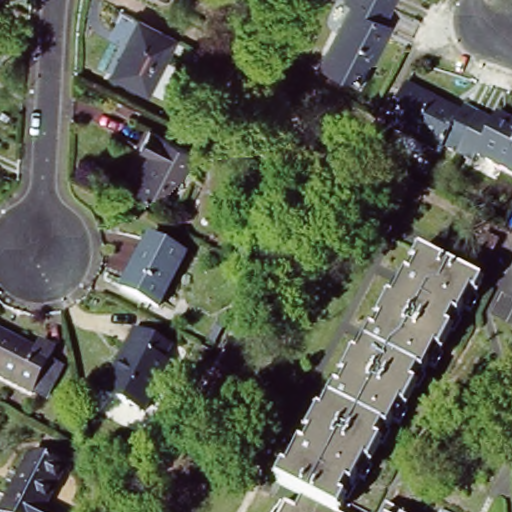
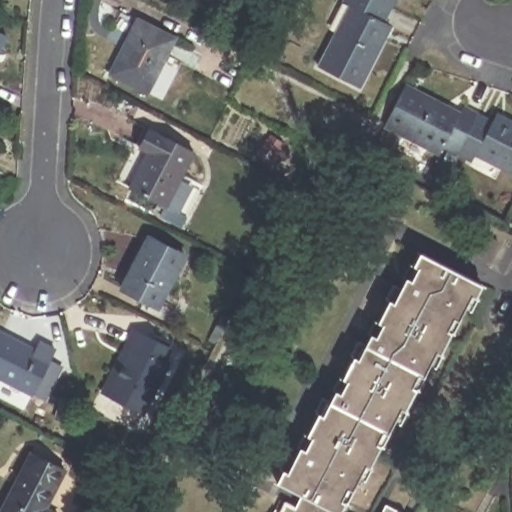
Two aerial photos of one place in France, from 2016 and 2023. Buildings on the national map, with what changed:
unchanged [(389,10),(382,25),(389,29),(358,89),(319,69),(350,7),(343,4),(345,0),(369,0),(389,10)]
unchanged [(389,10),(369,0),(394,0),(389,10)]
unchanged [(148,92),(113,75),(139,22),(174,41),(148,92)]
unchanged [(0,48),(0,33),(6,36),(0,48)]
unchanged [(447,152),(443,159),(389,131),(409,91),(464,120),(468,113),(481,120),(461,160),(447,152)]
unchanged [(496,127),(499,120),(512,127),(512,178),(478,160),(475,167),(461,160),(481,120),(496,127)]
unchanged [(169,207),(133,189),(149,155),(142,150),(151,133),(196,155),(169,207)]
unchanged [(159,310),(124,292),(151,239),(186,257),(159,310)]
unchanged [(279,485),(295,453),(300,456),(330,397),(336,400),(366,340),(371,342),(401,285),(406,287),(422,256),(484,289),(479,298),(476,296),(464,316),(460,314),(429,372),(426,370),(394,430),(388,426),(357,485),(351,482),(335,512),(277,512),(289,490),(279,485)]
unchanged [(166,351),(160,365),(163,367),(138,415),(103,396),(98,394),(123,346),(130,332),(166,351)]
unchanged [(27,395),(0,381),(0,336),(31,352),(34,344),(49,351),(43,363),(55,370),(39,400),(27,395)]
unchanged [(50,512),(3,512),(32,455),(64,472),(45,510),(50,512)]
unchanged [(393,512),(383,512),(385,508),(393,512)]

